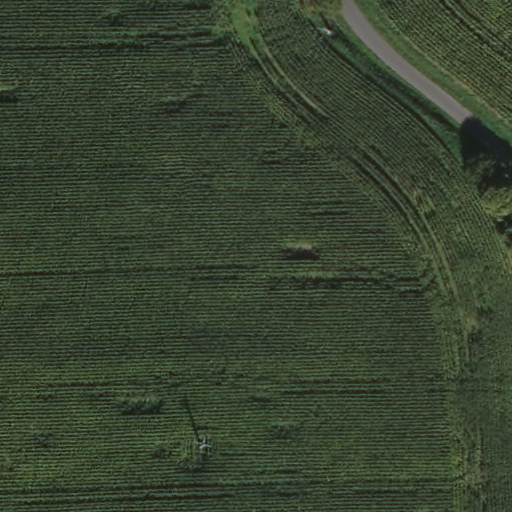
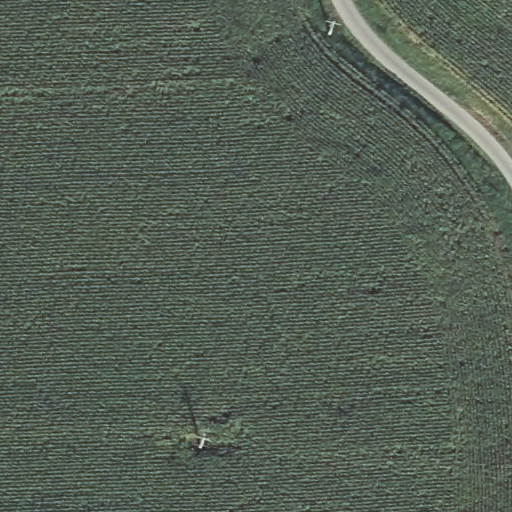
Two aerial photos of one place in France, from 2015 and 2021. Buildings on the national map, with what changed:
[]

